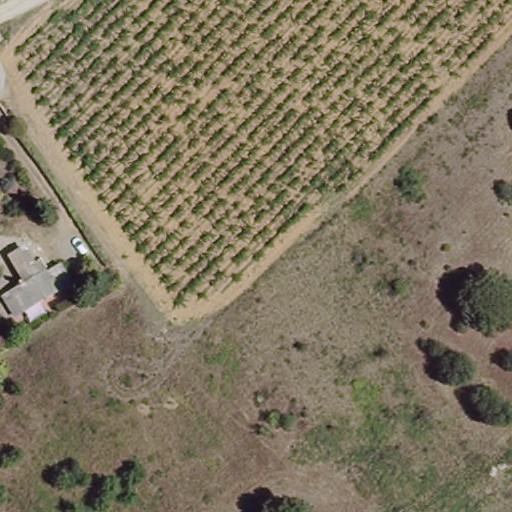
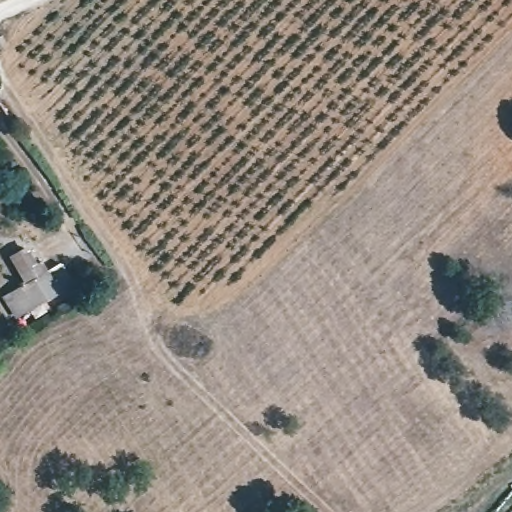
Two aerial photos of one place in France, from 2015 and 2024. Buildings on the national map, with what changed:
unchanged [(4,295),(25,281),(10,253),(29,242),(47,272),(65,262),(79,283),(17,316),(4,295)]

